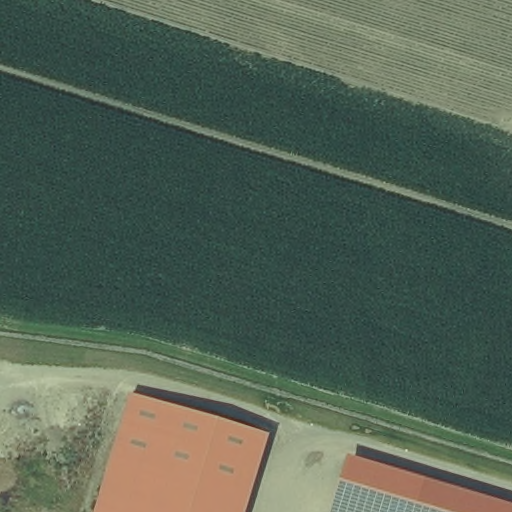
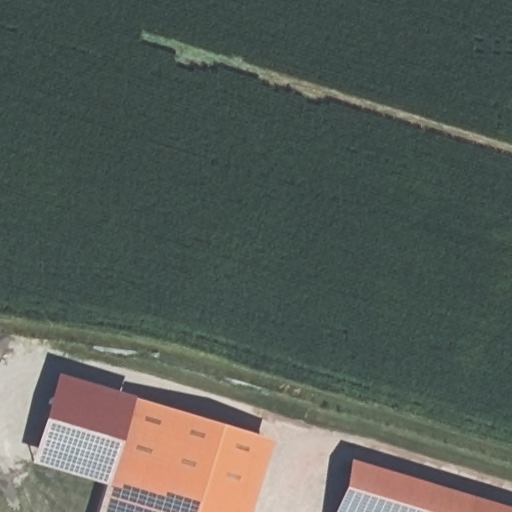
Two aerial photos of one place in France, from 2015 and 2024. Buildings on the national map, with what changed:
new [(53,394),(91,390),(125,400),(100,486),(32,466),(53,394)]
unchanged [(243,512),(101,512),(135,397),(266,437),(243,512)]
unchanged [(335,512),(352,460),(512,506),(512,512),(335,512)]

